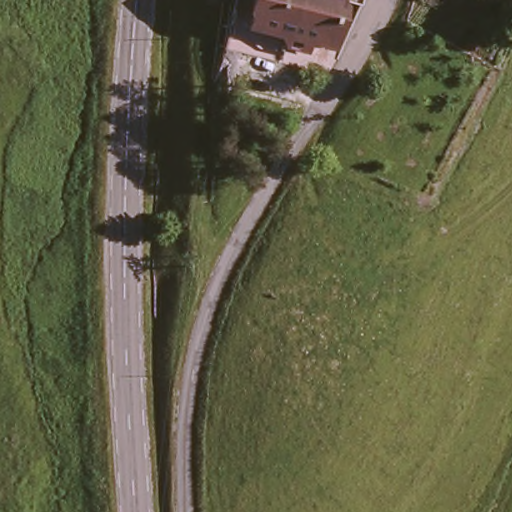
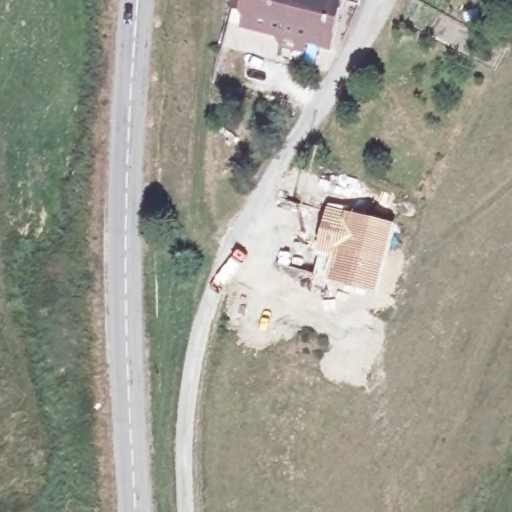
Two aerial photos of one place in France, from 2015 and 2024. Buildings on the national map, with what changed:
unchanged [(338,44),(244,24),(249,0),(348,0),(338,44)]
unchanged [(511,0),(512,0),(512,9),(507,7),(511,0)]
new [(328,204),(397,223),(379,293),(313,276),(328,204)]

